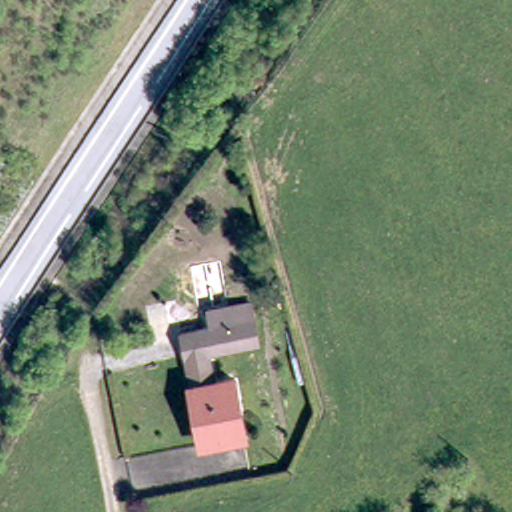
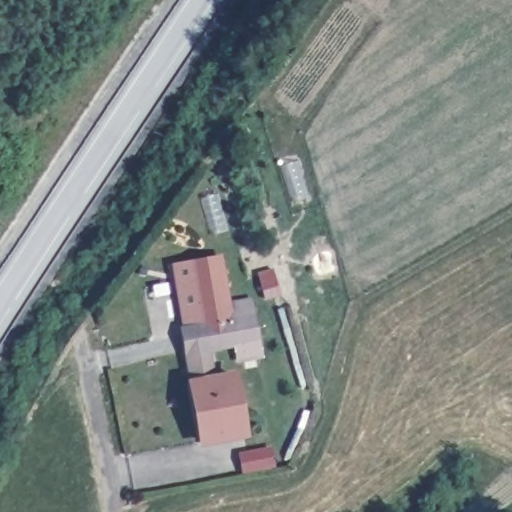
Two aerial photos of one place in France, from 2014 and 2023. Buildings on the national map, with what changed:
new [(213,309),(217,326),(186,333),(183,333),(182,327),(171,263),(222,254),(231,305),(213,309)]
unchanged [(220,382),(236,379),(248,437),(210,445),(186,333),(217,326),(213,309),(248,301),(258,300),(264,341),(256,343),(214,352),(220,382)]

